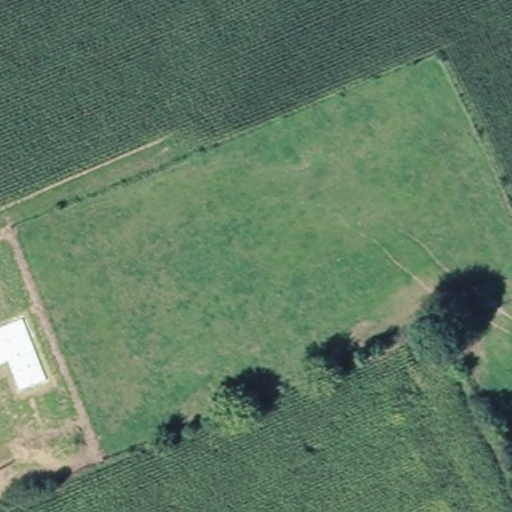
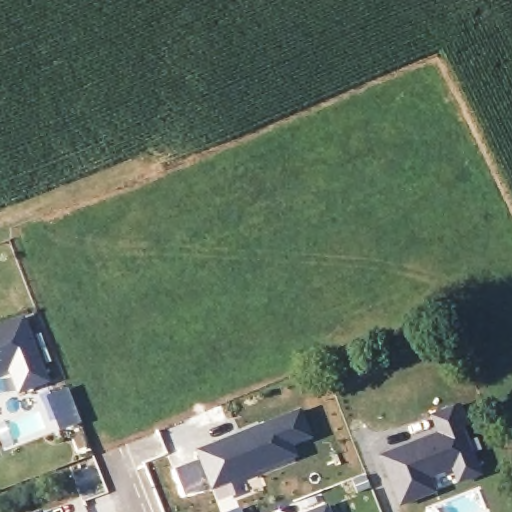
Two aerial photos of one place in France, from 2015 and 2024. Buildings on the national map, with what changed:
new [(48,379),(19,389),(10,366),(0,370),(0,325),(24,316),(48,379)]
new [(67,385),(81,422),(59,430),(41,393),(67,385)]
new [(435,431),(429,413),(459,402),(483,474),(399,507),(378,452),(435,431)]
new [(212,490),(210,491),(209,488),(183,496),(172,468),(198,459),(194,449),(299,406),(314,439),(295,447),(299,458),(245,482),(248,486),(234,491),(242,512),(220,512),(212,490)]
new [(95,460),(108,493),(83,501),(69,469),(95,460)]
new [(327,502),(331,512),(302,512),(327,502)]
new [(41,508),(43,512),(32,512),(41,508)]

